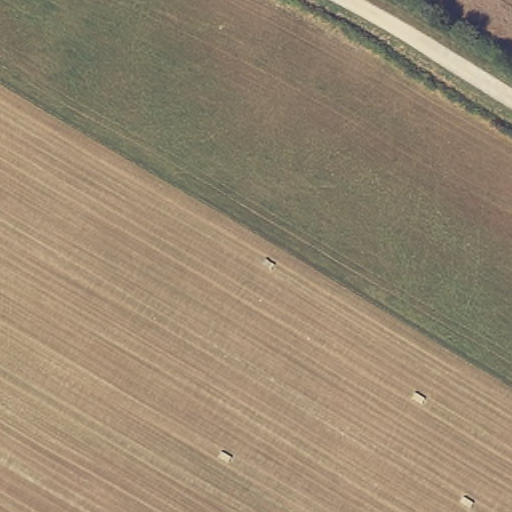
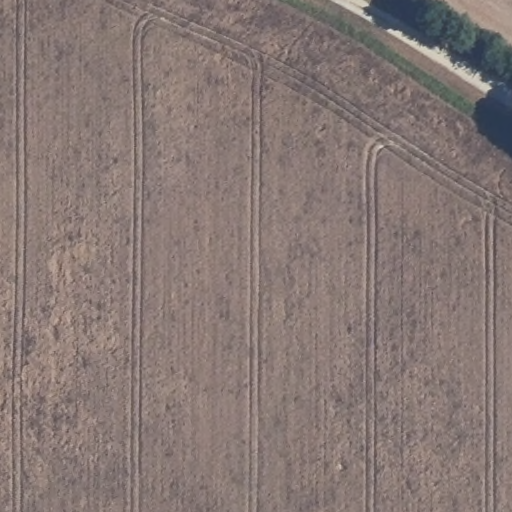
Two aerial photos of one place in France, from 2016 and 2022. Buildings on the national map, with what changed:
[]

